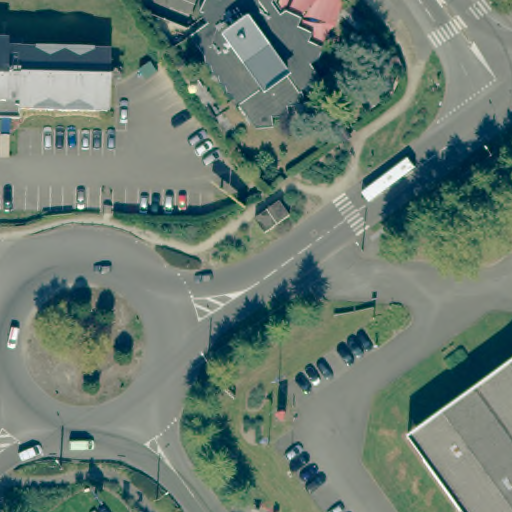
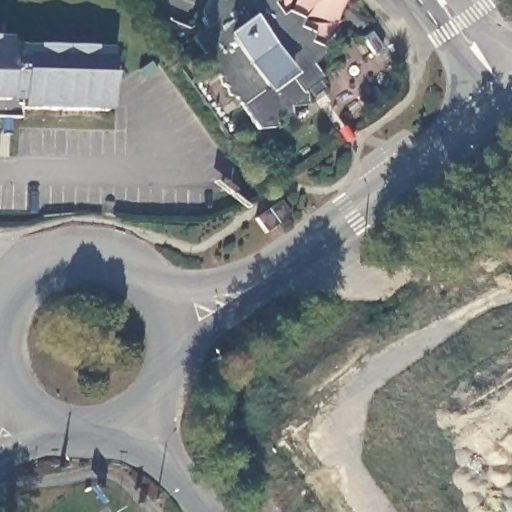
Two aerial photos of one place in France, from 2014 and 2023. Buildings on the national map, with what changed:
unchanged [(262,131),(219,75),(192,34),(204,0),(287,0),(322,41),(315,69),(307,104),(262,131)]
unchanged [(18,38),(21,46),(105,48),(104,106),(16,105),(16,115),(0,114),(0,37),(18,38)]
unchanged [(284,201),(293,214),(268,232),(259,220),(284,201)]
demolished [(407,434),(512,357),(512,512),(464,512),(407,434)]

